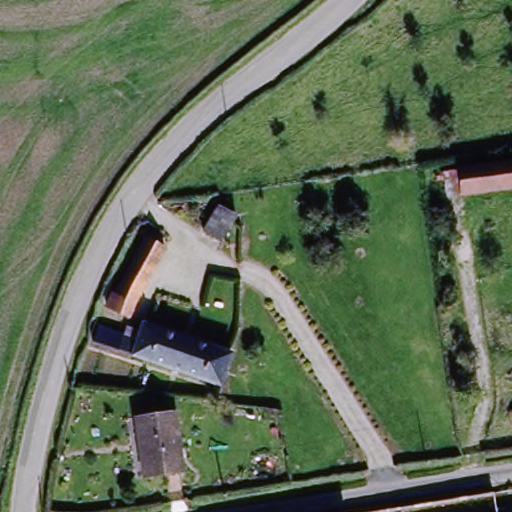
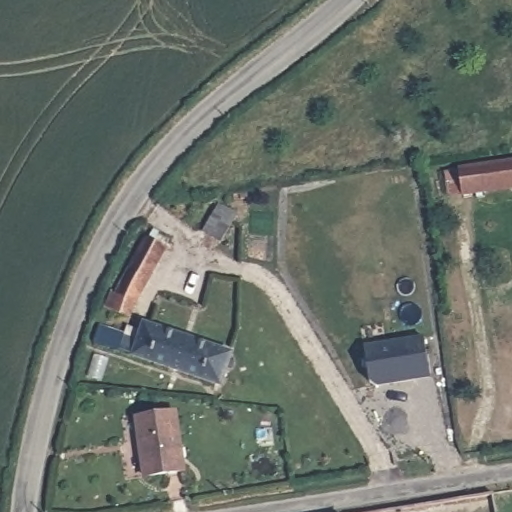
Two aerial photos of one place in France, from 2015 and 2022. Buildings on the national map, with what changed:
unchanged [(446,177),(459,175),(512,167),(512,192),(463,199),(449,201),(446,177)]
unchanged [(204,233),(218,206),(236,215),(221,242),(204,233)]
unchanged [(126,322),(105,310),(113,296),(116,298),(148,242),(166,252),(126,322)]
unchanged [(233,357),(223,389),(132,359),(93,346),(100,326),(138,339),(143,327),(233,357)]
new [(432,379),(380,387),(369,381),(362,346),(423,337),(432,379)]
unchanged [(146,477),(136,419),(173,413),(183,471),(146,477)]
demolished [(495,512),(493,500),(512,497),(512,512),(495,512)]
demolished [(414,512),(493,500),(495,512),(414,512)]
unchanged [(368,512),(320,512),(367,504),(368,512)]

